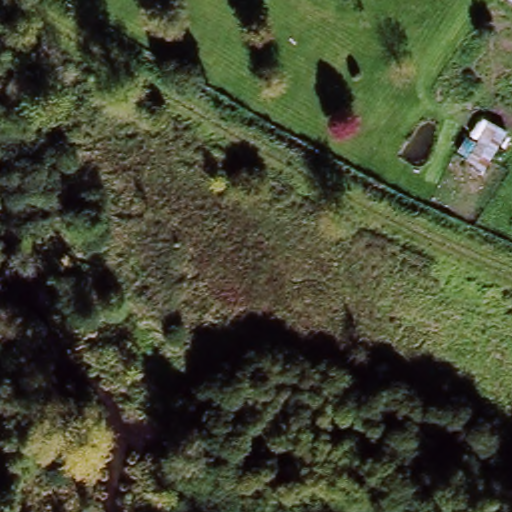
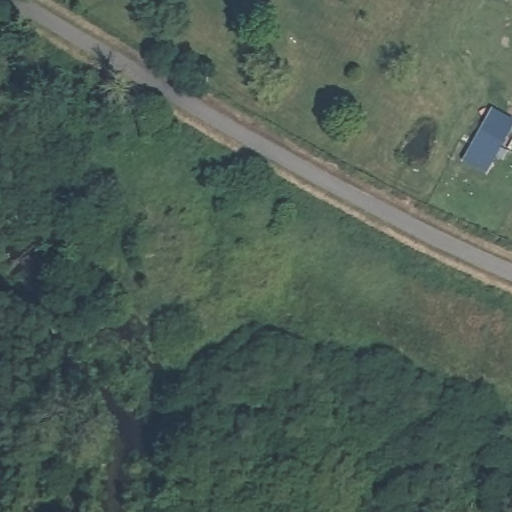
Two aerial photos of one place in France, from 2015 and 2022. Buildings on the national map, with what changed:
unchanged [(20,105),(7,102),(1,95),(0,92),(0,83),(2,77),(8,70),(17,70),(29,74),(32,82),(32,91),(27,100),(20,105)]
new [(512,119),(512,129),(486,176),(462,161),(493,109),(512,119)]

